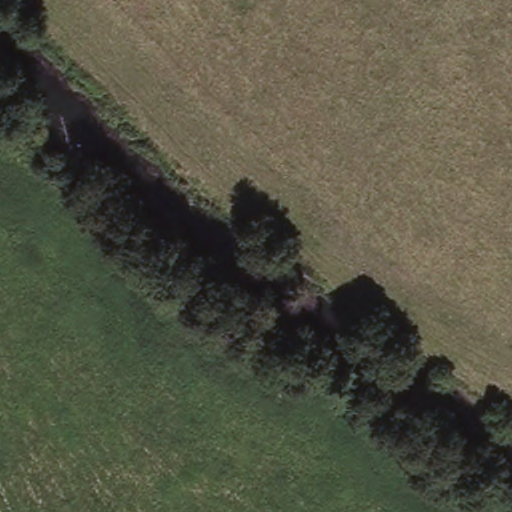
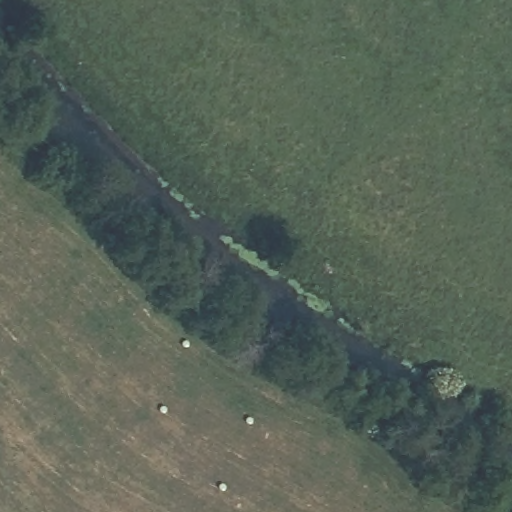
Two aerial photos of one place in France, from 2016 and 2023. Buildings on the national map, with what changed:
[]

